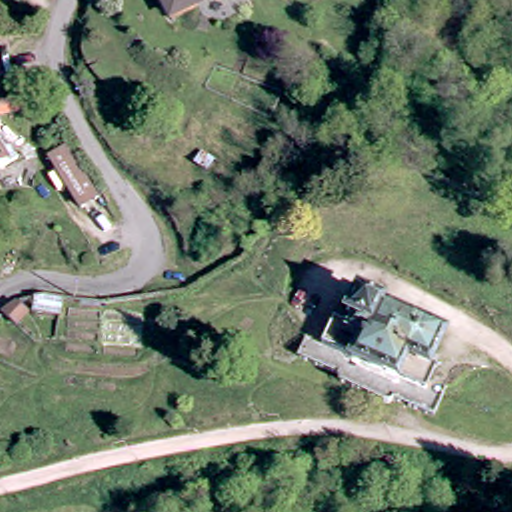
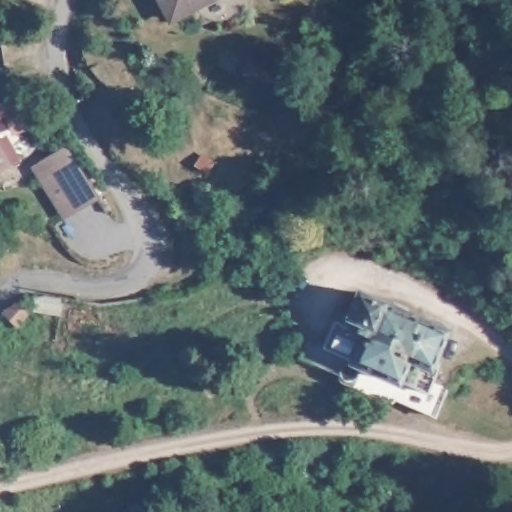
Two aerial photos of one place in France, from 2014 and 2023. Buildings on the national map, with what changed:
unchanged [(167,11),(160,0),(186,0),(167,11)]
unchanged [(27,97),(29,106),(8,112),(6,103),(27,97)]
unchanged [(8,144),(15,156),(0,166),(0,146),(2,148),(8,144)]
new [(30,166),(67,144),(98,198),(62,220),(30,166)]
unchanged [(337,324),(352,291),(438,327),(423,363),(432,367),(422,392),(392,379),(390,381),(346,362),(345,359),(315,348),(327,320),(337,324)]
unchanged [(42,293),(63,296),(60,315),(32,312),(35,295),(42,293)]
unchanged [(10,304),(18,301),(27,312),(12,323),(2,311),(10,304)]

